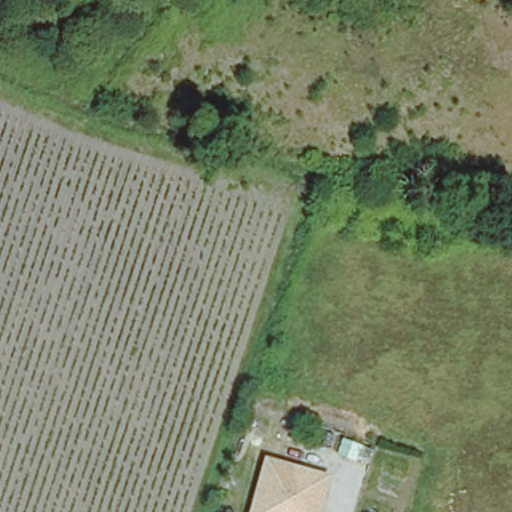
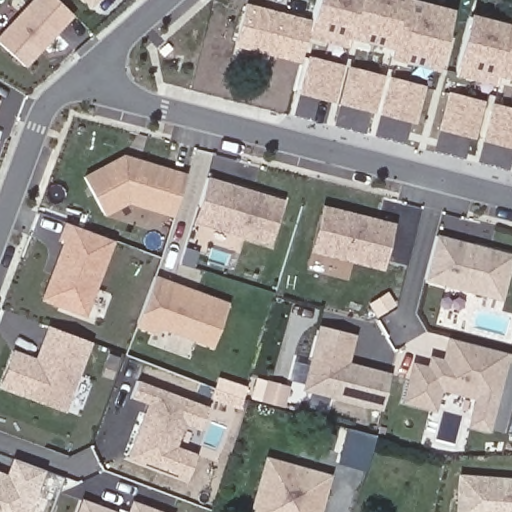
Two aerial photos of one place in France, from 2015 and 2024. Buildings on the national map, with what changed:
new [(59,0),(76,15),(28,67),(0,41),(39,0),(59,0)]
new [(89,0),(100,0),(94,5),(89,0)]
new [(428,71),(382,60),(384,51),(345,43),(344,50),(304,40),(311,0),(401,0),(443,11),(428,71)]
new [(304,40),(299,62),(234,46),(245,2),(308,19),(304,40)]
new [(503,19),(512,21),(512,84),(493,79),(491,86),(451,76),(460,16),(502,26),(503,19)]
new [(341,65),(334,104),(296,94),(304,56),(341,65)]
new [(380,76),(372,114),(337,104),(344,66),(380,76)]
new [(420,85),(411,123),(376,114),(384,76),(420,85)]
new [(481,102),(473,140),(436,130),(443,94),(481,102)]
new [(2,101),(0,105),(0,106),(0,100),(2,101)]
new [(512,150),(480,142),(489,104),(512,110),(512,150)]
new [(119,156),(181,175),(169,215),(123,201),(99,214),(80,176),(119,156)]
new [(212,181),(269,199),(256,241),(199,224),(212,181)]
new [(318,207),(388,225),(386,232),(377,268),(307,250),(318,207)]
new [(111,240),(83,318),(35,302),(58,241),(54,239),(58,224),(111,240)]
new [(434,237),(510,257),(499,300),(423,280),(434,237)]
new [(168,283),(193,293),(225,305),(209,347),(159,328),(150,333),(133,327),(151,277),(168,283)]
new [(317,326),(350,335),(343,365),(387,376),(378,410),(300,390),(317,326)]
new [(88,343),(62,413),(0,391),(0,371),(8,351),(31,358),(43,328),(88,343)]
new [(409,367),(424,371),(426,360),(439,364),(446,340),(502,354),(482,430),(466,425),(473,398),(434,388),(429,410),(400,402),(409,367)]
new [(206,408),(198,431),(179,425),(172,448),(193,456),(186,480),(121,457),(140,405),(125,400),(133,381),(206,408)]
unchanged [(332,473),(322,512),(251,512),(266,455),(332,473)]
new [(12,478),(19,460),(46,470),(39,488),(31,512),(0,512),(0,474),(12,478)]
new [(512,481),(512,512),(453,512),(455,478),(512,481)]
new [(86,501),(115,512),(82,512),(86,501)]
new [(136,503),(159,512),(133,512),(136,503)]

